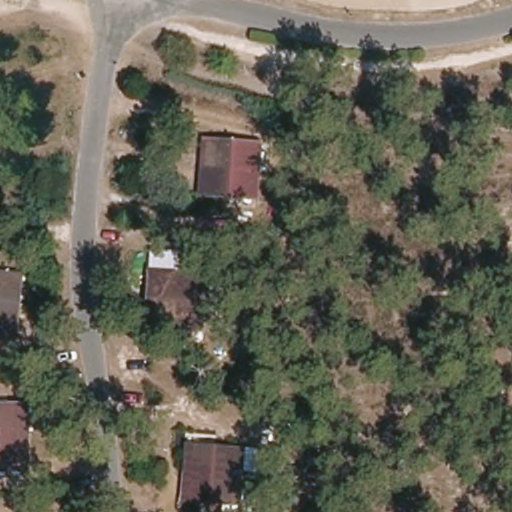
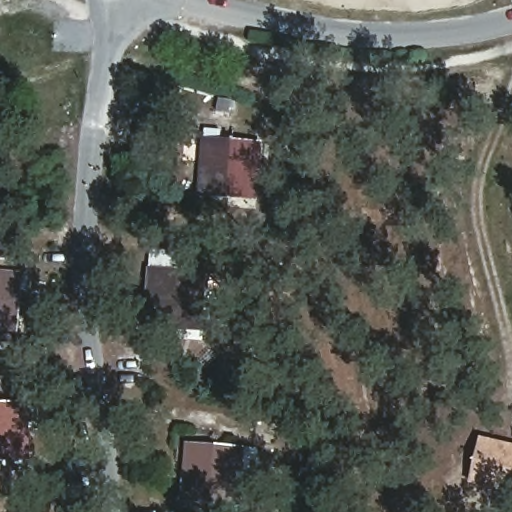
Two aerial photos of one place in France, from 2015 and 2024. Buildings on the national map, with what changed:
unchanged [(255,195),(197,190),(202,138),(260,144),(255,195)]
unchanged [(144,321),(150,267),(205,272),(200,327),(144,321)]
unchanged [(0,271),(24,273),(17,328),(0,326),(0,271)]
unchanged [(0,402),(25,402),(26,458),(0,458),(0,402)]
new [(512,444),(512,483),(503,482),(502,491),(469,482),(480,437),(512,444)]
unchanged [(239,500),(180,495),(185,442),(242,447),(239,500)]

